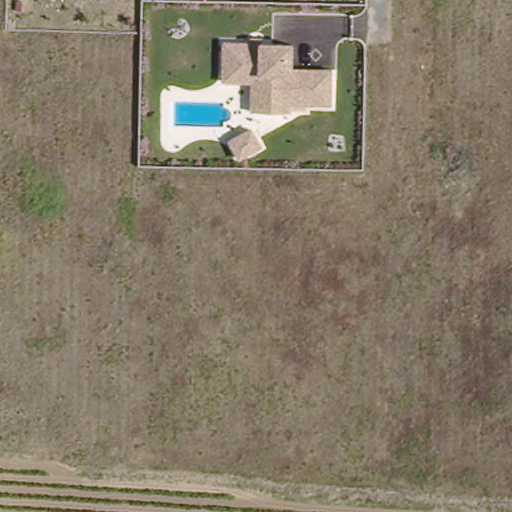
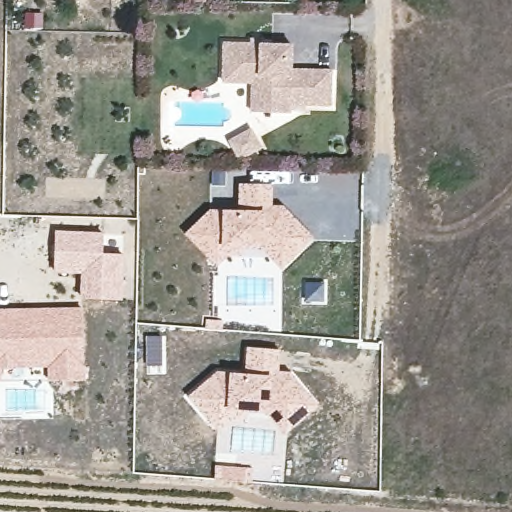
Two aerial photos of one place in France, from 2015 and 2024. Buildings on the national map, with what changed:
unchanged [(299,45),(299,71),(336,72),(335,105),(294,105),(294,112),(252,109),(252,80),(226,78),(227,42),(299,45)]
new [(262,247),(246,247),(246,255),(229,255),(218,266),(185,234),(211,209),(223,209),(240,209),(239,182),(272,183),(273,206),(284,206),(315,236),(283,269),(262,247)]
new [(54,230),(104,232),(103,252),(124,253),(123,300),(80,298),(80,274),(53,271),(54,230)]
new [(51,306),(83,307),(87,380),(47,380),(46,367),(0,368),(0,308),(51,306)]
new [(267,412),(249,410),(248,418),(233,418),(218,431),(189,398),(216,371),(231,372),(249,373),(248,347),(281,350),(280,370),(292,371),(320,405),(285,434),(267,412)]

